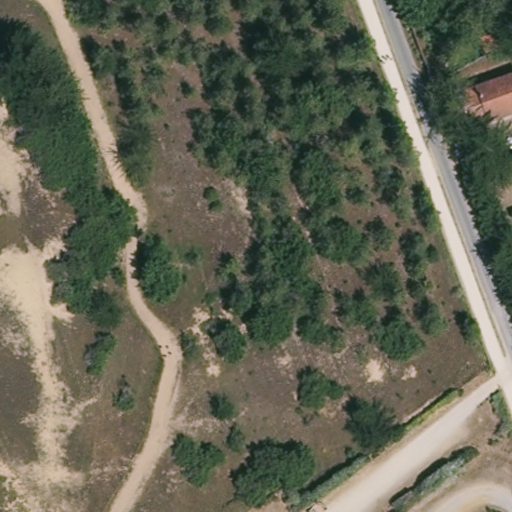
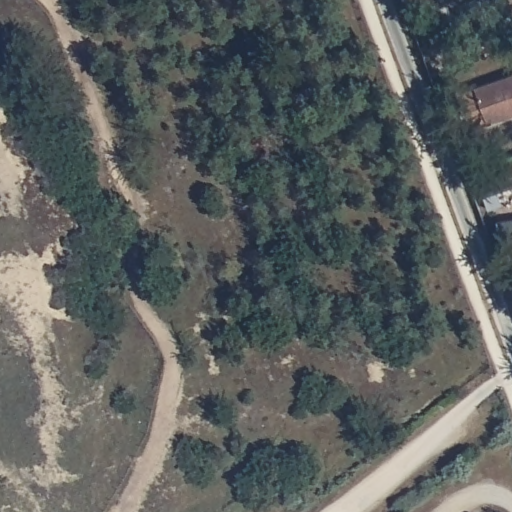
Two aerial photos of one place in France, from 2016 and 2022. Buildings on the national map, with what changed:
unchanged [(474,40),(501,25),(509,42),(483,56),(474,40)]
unchanged [(512,75),(512,118),(469,133),(455,97),(512,75)]

